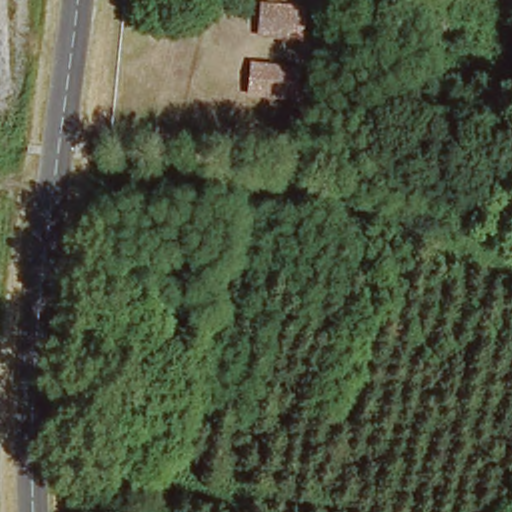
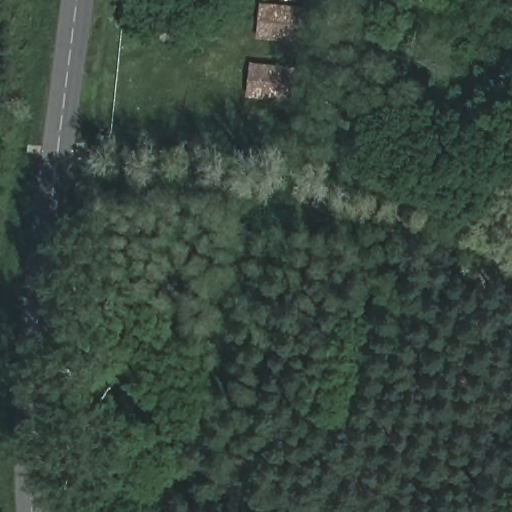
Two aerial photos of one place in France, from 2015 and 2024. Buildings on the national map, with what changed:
unchanged [(299,50),(257,46),(261,0),(299,0),(304,1),(299,50)]
unchanged [(237,96),(239,66),(298,66),(298,100),(237,96)]

